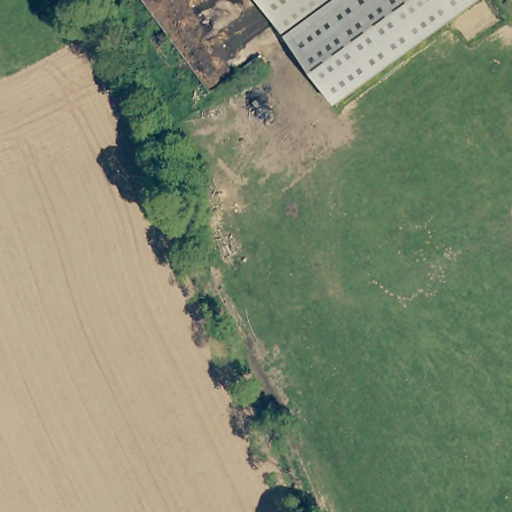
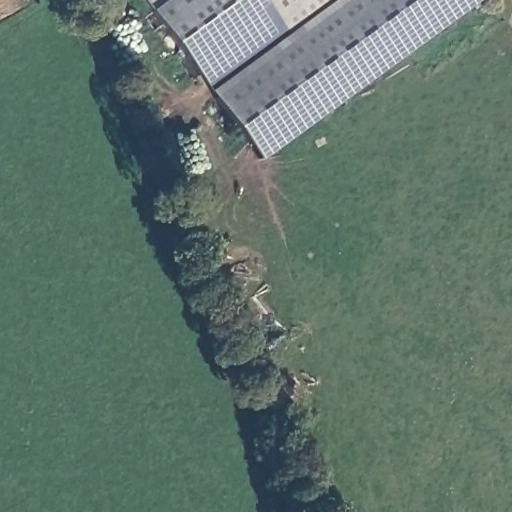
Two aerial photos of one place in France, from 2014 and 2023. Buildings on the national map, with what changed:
new [(140,0),(260,0),(292,44),(337,105),(262,163),(140,0)]
unchanged [(259,0),(351,0),(292,44),(259,0)]
unchanged [(351,0),(479,0),(337,105),(292,44),(351,0)]

